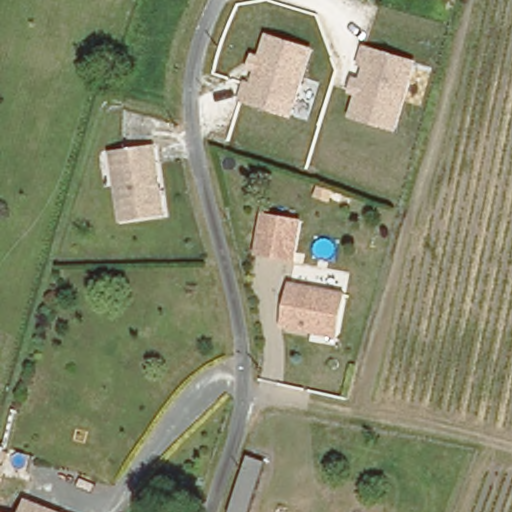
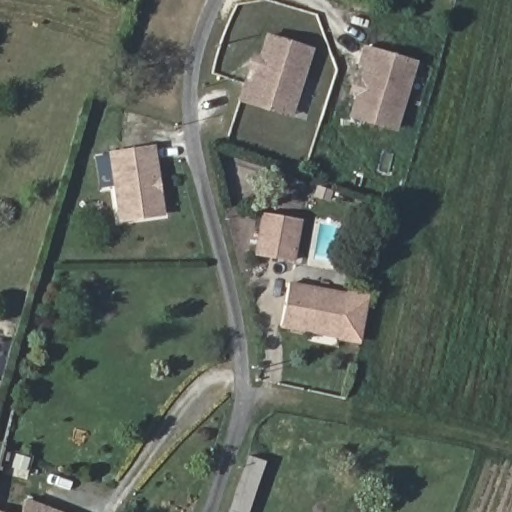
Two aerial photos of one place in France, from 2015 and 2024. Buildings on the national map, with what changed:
unchanged [(290,117),(247,105),(270,37),(312,51),(290,117)]
unchanged [(396,134),(348,118),(355,97),(348,95),(352,79),(360,81),(364,69),(357,67),(363,46),(417,64),(396,134)]
unchanged [(165,215),(117,222),(107,152),(155,147),(165,215)]
unchanged [(294,262),(254,256),(261,214),(300,221),(294,262)]
unchanged [(340,339),(278,329),(285,287),(346,296),(340,339)]
new [(346,296),(347,290),(370,294),(361,343),(340,339),(346,296)]
unchanged [(248,512),(231,512),(249,457),(263,464),(248,512)]
unchanged [(27,500),(63,512),(24,512),(27,500)]
unchanged [(0,511),(4,512),(0,512),(0,511)]

